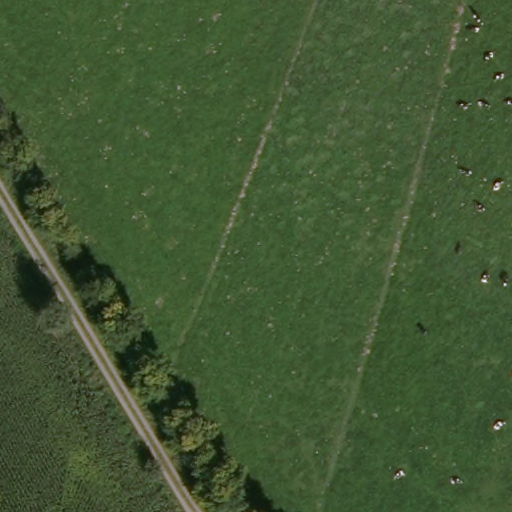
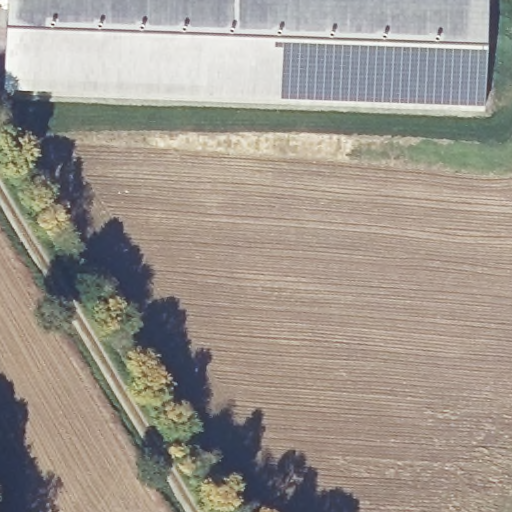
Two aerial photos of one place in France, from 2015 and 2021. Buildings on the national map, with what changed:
new [(4,95),(9,3),(0,3),(0,0),(488,0),(483,116),(4,95)]

